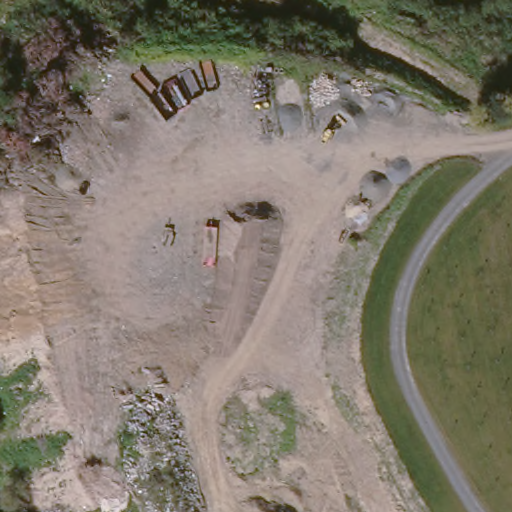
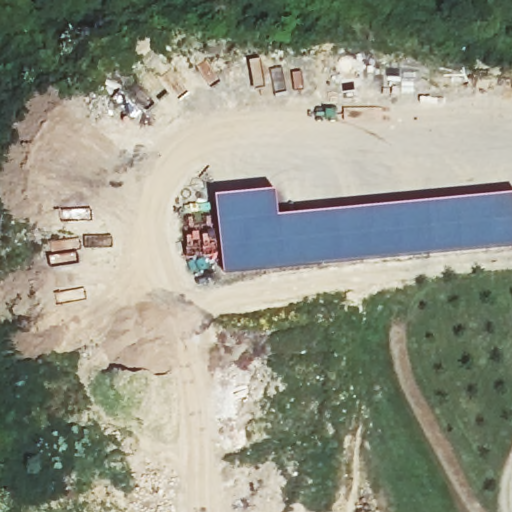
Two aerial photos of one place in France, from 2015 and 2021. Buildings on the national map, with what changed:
new [(281,219),(512,196),(512,247),(226,275),(218,200),(278,194),(281,219)]

